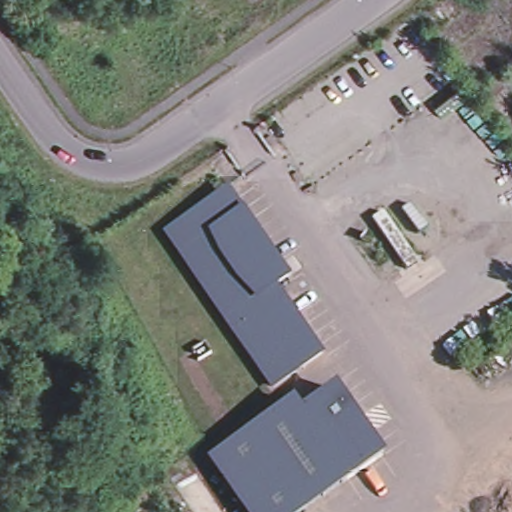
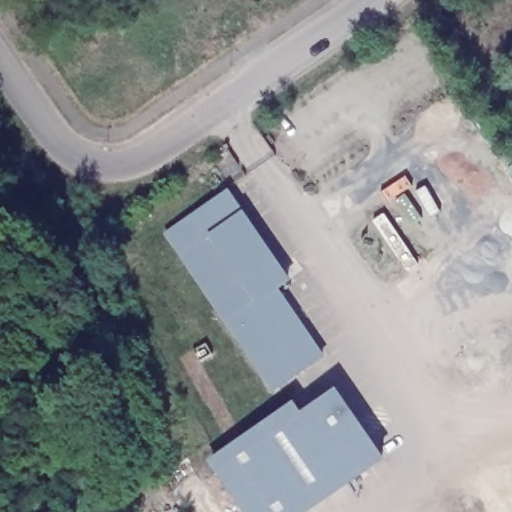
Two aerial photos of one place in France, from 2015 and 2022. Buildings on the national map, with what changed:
unchanged [(275,386),(168,230),(230,186),(292,280),(283,286),(325,353),(275,386)]
unchanged [(385,458),(299,512),(249,512),(212,452),(296,397),(303,407),(338,388),(385,458)]

